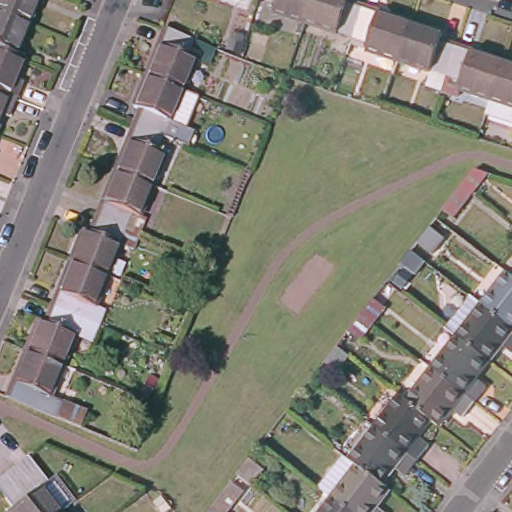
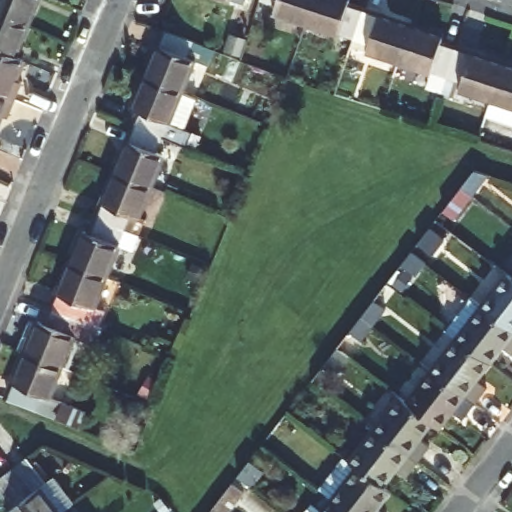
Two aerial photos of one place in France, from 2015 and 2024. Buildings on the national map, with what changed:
unchanged [(0,93),(0,50),(0,14),(0,0),(42,0),(30,26),(17,57),(23,59),(15,79),(22,83),(15,100),(7,118),(0,115),(0,93)]
unchanged [(237,1),(232,0),(238,0),(237,1)]
unchanged [(295,18),(265,8),(267,1),(264,0),(301,0),(295,18)]
unchanged [(344,34),(295,18),(301,0),(339,0),(339,1),(353,5),(344,34)]
unchanged [(391,57),(355,45),(357,39),(344,34),(353,5),(402,21),(391,57)]
unchanged [(438,72),(391,57),(402,21),(434,31),(432,38),(447,43),(438,72)]
unchanged [(162,29),(187,39),(210,49),(212,49),(205,64),(192,58),(179,90),(142,74),(161,29),(161,28),(162,29)]
unchanged [(483,95),(451,84),(453,77),(438,72),(447,43),(495,59),(483,95)]
unchanged [(495,59),(512,65),(512,104),(483,95),(495,59)]
unchanged [(179,90),(195,97),(182,128),(191,132),(185,146),(160,136),(130,123),(137,109),(129,105),(142,74),(179,90)]
unchanged [(160,136),(156,147),(165,152),(152,186),(112,168),(130,123),(160,136)]
unchanged [(91,217),(112,168),(152,186),(138,216),(145,220),(137,237),(91,217)]
unchanged [(432,211),(440,200),(441,199),(448,190),(460,175),(478,179),(462,200),(445,222),(432,211)]
unchanged [(137,237),(130,252),(115,246),(103,274),(65,258),(80,224),(87,227),(91,217),(137,237)]
unchanged [(103,274),(89,306),(97,309),(92,323),(45,303),(65,258),(103,274)]
unchanged [(508,266),(512,269),(512,316),(486,296),(508,266)]
unchanged [(486,296),(512,316),(512,343),(505,337),(495,349),(463,325),(450,315),(473,286),(486,296)]
unchanged [(355,307),(367,293),(379,303),(367,317),(342,349),(330,364),(318,355),(330,339),(355,307)]
unchanged [(20,348),(35,314),(40,316),(45,303),(92,323),(85,338),(71,331),(57,364),(20,348)]
unchanged [(463,325),(495,349),(482,365),(496,377),(484,392),(438,356),(463,325)]
unchanged [(0,395),(20,348),(57,364),(44,394),(56,399),(49,416),(0,395)]
unchanged [(484,392),(472,409),(457,398),(445,413),(440,408),(413,388),(438,356),(484,392)]
unchanged [(408,384),(413,388),(440,408),(427,424),(440,434),(428,450),(383,414),(408,384)]
unchanged [(58,400),(80,410),(72,426),(52,417),(58,400)]
unchanged [(383,414),(428,450),(415,466),(403,456),(389,474),(357,448),(383,414)]
unchanged [(272,443),(258,460),(243,449),(257,432),(272,443)]
unchanged [(328,471),(351,443),(357,448),(389,474),(396,479),(385,492),(398,502),(391,512),(378,512),(341,482),(328,471)]
unchanged [(7,512),(2,505),(8,500),(0,489),(0,473),(3,470),(15,462),(25,453),(42,475),(35,480),(58,510),(57,512),(7,512)]
unchanged [(235,487),(217,511),(203,500),(222,476),(235,487)]
unchanged [(378,512),(316,512),(341,482),(378,512)]
unchanged [(60,512),(57,512),(58,510),(60,512)]

